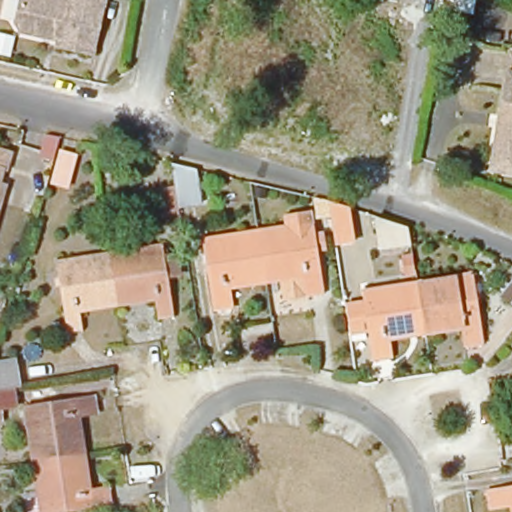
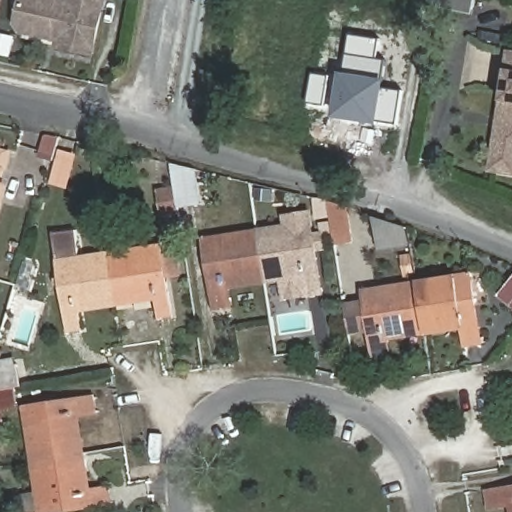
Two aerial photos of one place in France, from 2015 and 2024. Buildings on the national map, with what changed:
unchanged [(16,26),(22,0),(49,0),(67,4),(68,0),(105,0),(92,56),(57,49),(59,41),(45,39),(22,34),(16,26)]
new [(442,0),(473,0),(472,5),(442,0)]
new [(396,125),(381,123),(380,127),(335,119),(342,74),(350,36),(380,40),(375,60),(386,61),(384,81),(386,81),(385,88),(402,92),(396,125)]
unchanged [(492,151),(507,56),(512,57),(512,174),(489,170),(492,151)]
new [(60,151),(76,155),(68,188),(51,184),(60,151)]
unchanged [(11,155),(2,188),(9,189),(5,204),(0,223),(0,152),(11,155)]
unchanged [(195,177),(199,212),(180,214),(175,172),(195,177)]
unchanged [(352,214),(357,247),(339,249),(333,208),(352,214)]
unchanged [(410,250),(378,255),(373,222),(407,232),(410,250)]
unchanged [(315,230),(325,296),(310,299),(288,303),(285,285),(283,277),(267,279),(261,239),(315,230)]
unchanged [(267,279),(253,282),(255,290),(231,294),(235,311),(219,314),(208,247),(261,239),(267,279)]
unchanged [(165,256),(178,254),(181,272),(168,274),(175,313),(159,315),(156,299),(132,303),(131,294),(117,297),(110,256),(164,247),(165,256)]
unchanged [(117,297),(101,299),(103,307),(80,311),(84,329),(67,331),(56,265),(110,256),(117,297)]
unchanged [(416,283),(470,274),(481,341),(466,344),(462,325),(440,329),(438,322),(423,324),(416,283)]
unchanged [(416,283),(423,324),(408,327),(409,335),(387,339),(390,357),(375,360),(371,334),(348,337),(343,307),(366,304),(364,293),(416,283)]
unchanged [(512,283),(512,305),(501,295),(512,283)]
unchanged [(18,363),(22,387),(16,388),(20,406),(0,408),(0,365),(18,363)]
unchanged [(27,409),(94,398),(96,414),(77,417),(82,440),(74,442),(76,455),(36,462),(27,409)]
unchanged [(24,499),(41,497),(36,462),(76,455),(79,472),(86,471),(90,493),(109,489),(111,504),(57,512),(26,512),(24,499)]
unchanged [(491,511),(489,497),(512,493),(512,512),(511,508),(491,511)]

